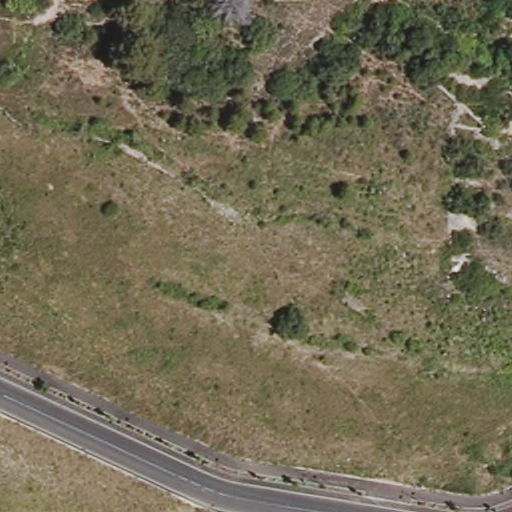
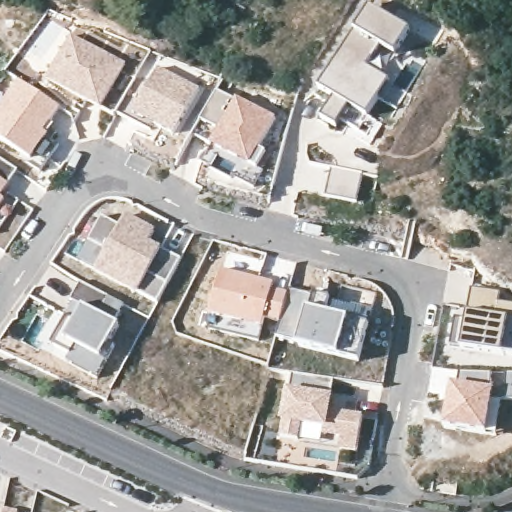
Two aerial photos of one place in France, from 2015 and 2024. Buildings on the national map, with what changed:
new [(415,33),(400,58),(385,49),(371,71),(393,85),(372,121),(353,110),(343,125),(329,115),(338,100),(322,90),(373,8),(415,33)]
new [(72,33),(127,63),(102,107),(47,78),(72,33)]
new [(137,75),(150,82),(159,65),(201,88),(177,134),(157,123),(152,130),(117,111),(137,75)]
new [(60,107),(45,131),(48,135),(31,160),(0,139),(0,107),(19,79),(60,107)]
new [(199,121),(216,89),(276,120),(255,160),(266,166),(253,190),(230,178),(235,169),(218,160),(215,166),(202,160),(217,130),(199,121)]
new [(1,197),(5,200),(0,208),(0,159),(18,171),(1,197)]
new [(335,172),(364,177),(359,204),(330,198),(335,172)]
new [(120,226),(125,216),(155,232),(147,248),(159,255),(162,249),(182,259),(158,304),(97,271),(80,261),(90,242),(102,217),(120,226)]
new [(220,270),(275,284),(273,290),(288,294),(282,317),(267,313),(263,329),(260,343),(210,330),(207,324),(209,314),(220,270)]
new [(53,345),(68,316),(77,321),(84,307),(72,301),(82,282),(127,306),(117,323),(122,326),(112,344),(118,347),(109,363),(100,379),(70,364),(74,356),(53,345)]
new [(282,317),(288,294),(290,289),(313,295),(314,293),(331,297),(327,313),(370,324),(361,362),(301,346),(302,344),(277,337),(282,317)]
new [(468,322),(472,290),(502,293),(501,303),(512,304),(512,357),(465,351),(455,350),(458,321),(468,322)]
new [(360,441),(344,438),(324,434),(325,427),(302,423),(299,439),(281,436),(292,371),(335,378),(329,410),(348,413),(365,416),(360,441)]
new [(458,372),(512,374),(512,402),(493,401),(495,388),(457,384),(458,372)]
new [(450,383),(457,384),(495,388),(493,401),(492,412),(500,412),(496,435),(442,428),(450,383)]
new [(16,512),(3,512),(3,509),(16,512)]

